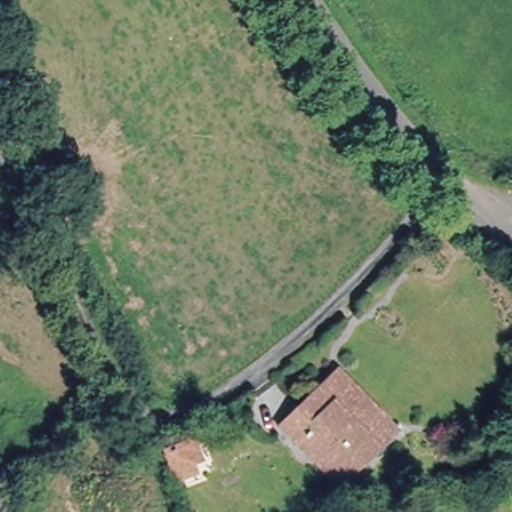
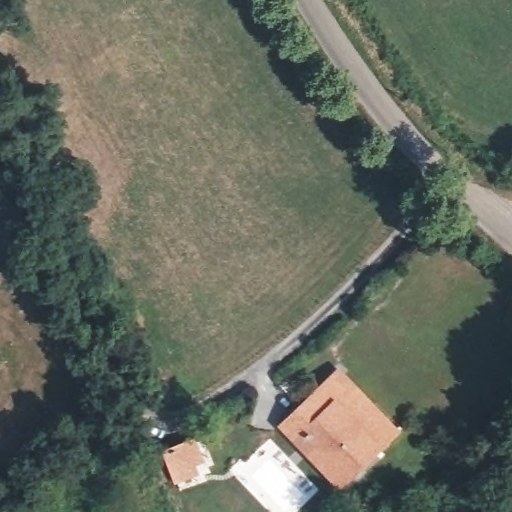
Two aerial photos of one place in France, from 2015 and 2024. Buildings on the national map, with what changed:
unchanged [(393,431),(332,487),(275,421),(336,369),(393,431)]
unchanged [(186,468),(190,478),(175,483),(160,454),(190,443),(197,463),(186,468)]

